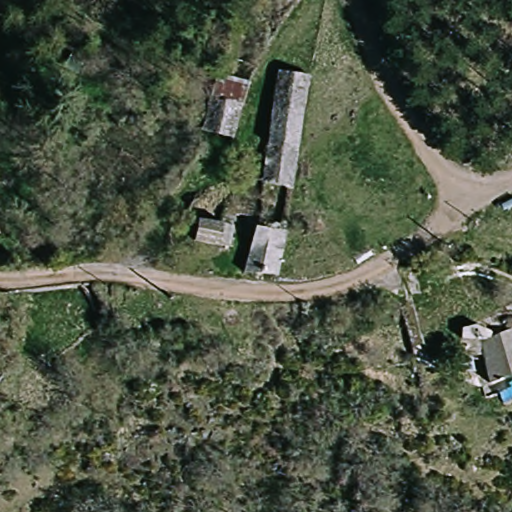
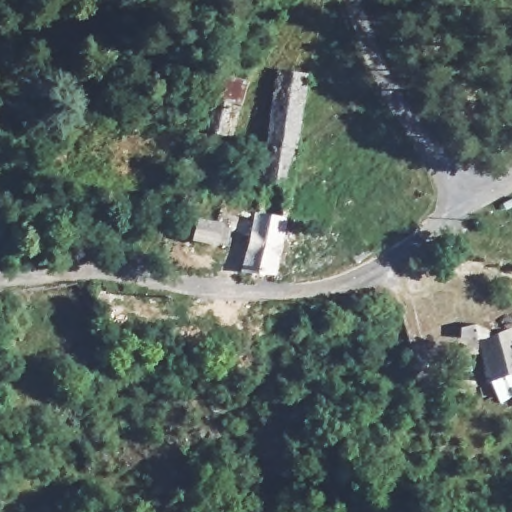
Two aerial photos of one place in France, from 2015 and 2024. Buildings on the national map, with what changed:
unchanged [(289,151),(283,188),(255,184),(261,130),(269,72),(300,75),(289,151)]
unchanged [(192,128),(198,106),(208,76),(238,85),(221,137),(192,128)]
unchanged [(216,226),(212,249),(193,246),(194,239),(188,238),(192,220),(216,226)]
unchanged [(276,234),(268,277),(268,282),(236,279),(243,222),(276,226),(276,229),(276,234)]
unchanged [(512,357),(512,375),(480,388),(473,362),(450,359),(451,344),(470,344),(507,333),(512,357)]

